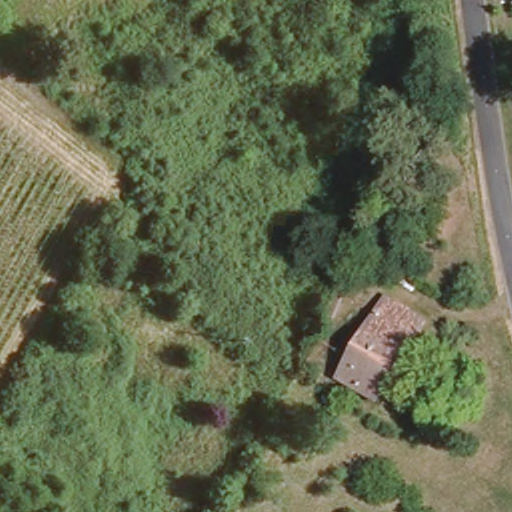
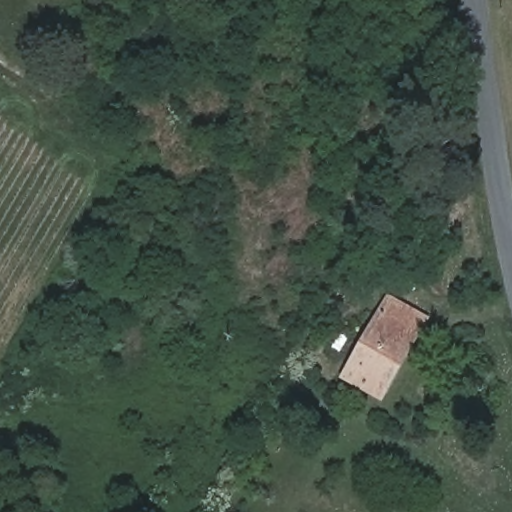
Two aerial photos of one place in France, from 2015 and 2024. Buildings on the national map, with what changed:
unchanged [(361,376),(345,366),(387,292),(425,312),(408,343),(383,388),(361,376)]

